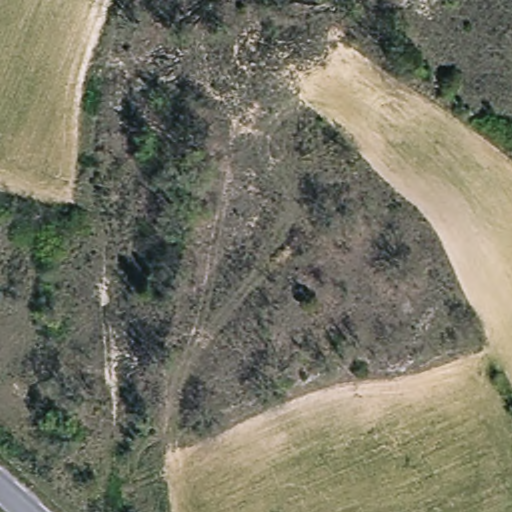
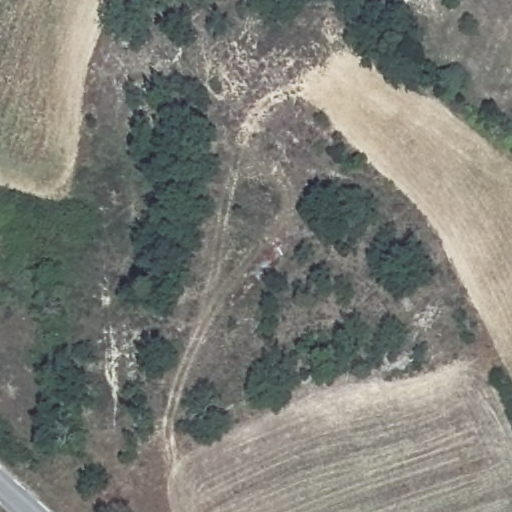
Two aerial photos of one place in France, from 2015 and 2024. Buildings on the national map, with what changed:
[]

